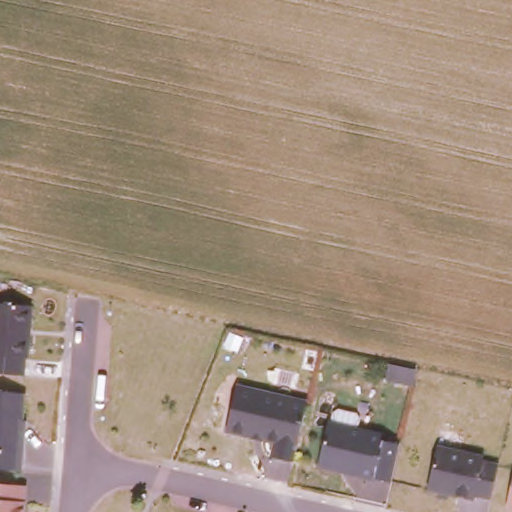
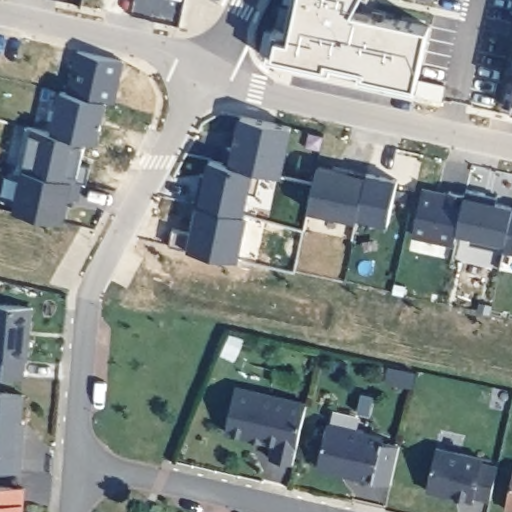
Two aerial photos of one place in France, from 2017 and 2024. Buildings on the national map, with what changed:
new [(415,90),(359,77),(360,71),(332,65),(330,71),(267,57),(273,28),(285,31),(292,0),(311,0),(429,25),(415,90)]
new [(311,0),(358,0),(354,9),(311,0)]
new [(117,101),(107,100),(69,92),(78,49),(125,59),(117,101)]
new [(437,85),(435,99),(417,95),(419,81),(437,85)]
new [(62,91),(107,100),(97,142),(52,132),(62,91)]
new [(512,110),(510,110),(512,103),(512,110)]
new [(280,174),(224,162),(227,146),(235,147),(242,115),(291,125),(280,174)]
new [(23,170),(18,168),(29,126),(52,132),(87,140),(77,181),(23,170)]
new [(257,187),(250,185),(245,211),(250,211),(240,259),(189,249),(189,246),(170,242),(174,225),(192,227),(198,200),(200,200),(209,159),(224,162),(262,170),(257,187)]
new [(357,220),(309,209),(317,165),(350,172),(350,170),(367,173),(357,220)]
new [(350,170),(350,172),(332,169),(333,165),(350,170)]
new [(80,182),(77,200),(69,198),(63,223),(14,212),(23,170),(80,182)]
new [(398,179),(387,226),(357,220),(367,173),(398,179)]
new [(472,234),(457,230),(466,189),(497,195),(495,202),(512,206),(512,211),(504,249),(470,242),(472,234)]
new [(455,241),(412,232),(422,190),(447,195),(449,190),(465,194),(455,241)]
new [(512,214),(512,251),(504,250),(512,214)]
unchanged [(34,306),(25,377),(0,375),(0,304),(34,306)]
unchanged [(309,400),(295,463),(269,458),(272,445),(223,434),(235,384),(309,400)]
unchanged [(27,393),(24,421),(27,421),(22,472),(0,470),(0,392),(27,393)]
unchanged [(400,436),(390,485),(315,468),(327,421),(400,436)]
unchanged [(485,455),(485,460),(498,463),(489,503),(426,491),(437,445),(485,455)]
unchanged [(512,477),(512,512),(504,510),(512,477)]
unchanged [(27,485),(25,512),(0,512),(0,484),(27,485)]

